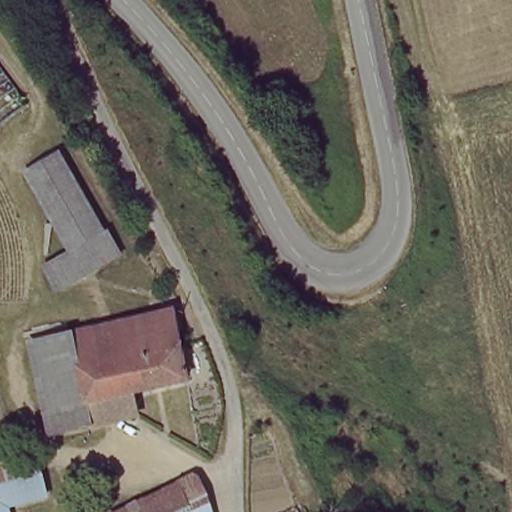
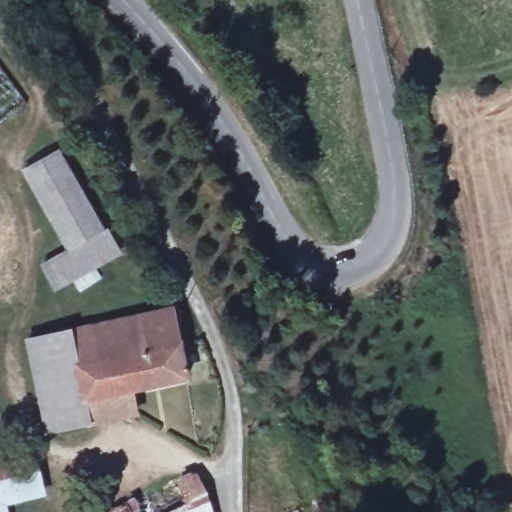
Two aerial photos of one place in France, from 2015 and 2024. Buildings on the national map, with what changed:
unchanged [(0,123),(0,68),(26,104),(0,123)]
unchanged [(59,150),(103,233),(117,227),(128,254),(53,292),(39,264),(66,249),(20,173),(59,150)]
unchanged [(74,328),(170,309),(178,343),(81,364),(74,328)]
unchanged [(74,328),(81,364),(93,426),(44,437),(25,338),(74,328)]
unchanged [(185,384),(134,396),(138,417),(93,426),(81,364),(178,343),(185,384)]
unchanged [(9,512),(0,512),(0,453),(31,447),(45,498),(8,506),(9,512)]
unchanged [(109,504),(195,475),(199,488),(202,497),(171,507),(163,510),(163,512),(111,512),(109,504)]

